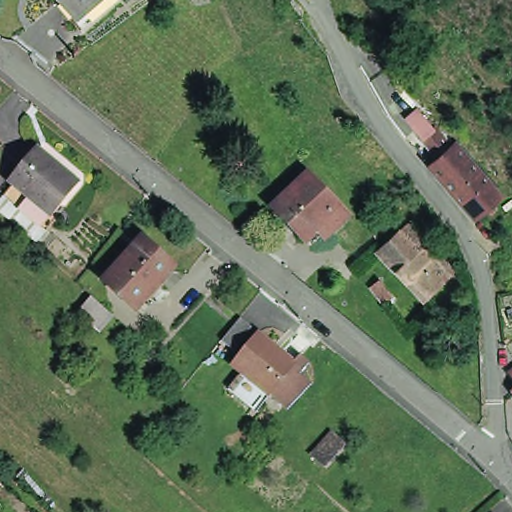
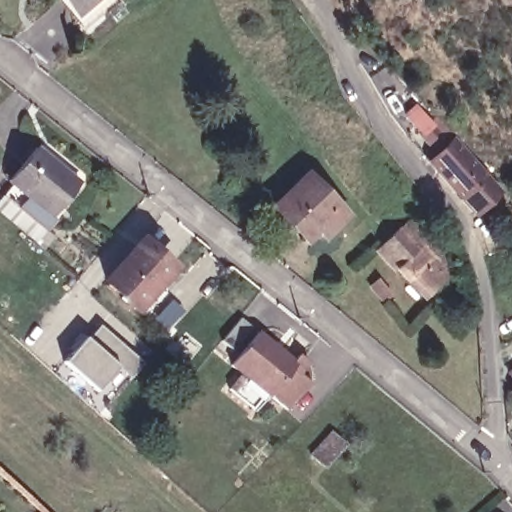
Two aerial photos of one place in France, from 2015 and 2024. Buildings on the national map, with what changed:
unchanged [(75,7),(69,0),(83,0),(75,7)]
unchanged [(396,115),(409,105),(424,123),(412,133),(396,115)]
unchanged [(0,201),(0,200),(9,190),(19,178),(15,175),(41,141),(85,177),(58,209),(61,212),(51,224),(40,237),(0,201)]
unchanged [(426,164),(435,159),(439,156),(435,149),(444,142),(448,149),(457,143),(501,196),(482,212),(475,218),(426,164)]
unchanged [(277,204),(307,173),(336,201),(347,212),(327,232),(320,225),(308,234),(277,204)]
unchanged [(375,249),(395,232),(398,235),(418,257),(428,247),(451,273),(441,282),(423,298),(380,254),(375,249)]
unchanged [(143,238),(175,267),(139,306),(108,276),(143,238)]
new [(144,362),(97,415),(53,374),(101,325),(144,362)]
unchanged [(256,333),(285,357),(294,365),(266,399),(228,368),(256,333)]
unchanged [(294,365),(285,357),(295,352),(311,366),(303,374),(313,382),(285,412),(266,399),(294,365)]
unchanged [(512,371),(512,379),(507,375),(512,371)]

